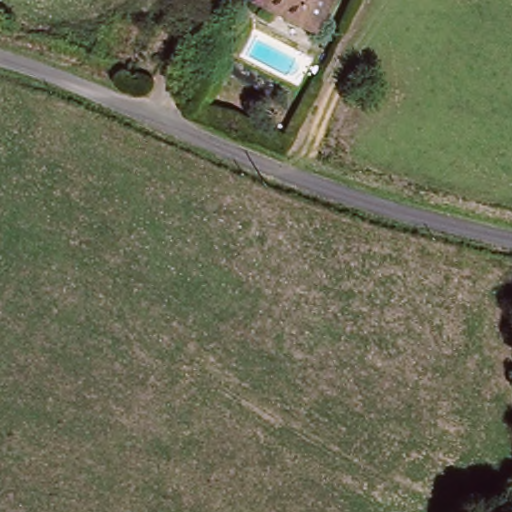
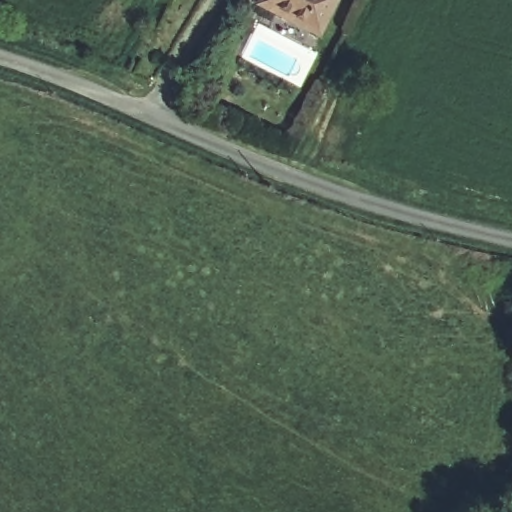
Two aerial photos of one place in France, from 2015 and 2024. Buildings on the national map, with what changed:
unchanged [(265,0),(338,0),(321,31),(265,1),(265,0)]

